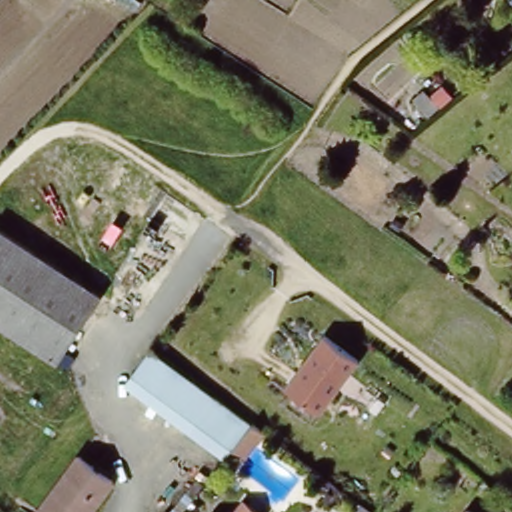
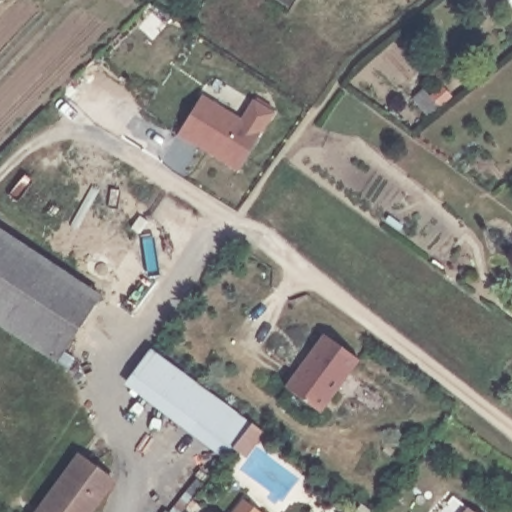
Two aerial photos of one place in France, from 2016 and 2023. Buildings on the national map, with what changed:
unchanged [(439,104),(429,112),(415,94),(424,87),(439,104)]
new [(202,95),(242,119),(254,99),(275,111),(237,171),(178,136),(202,95)]
unchanged [(99,300),(56,367),(0,330),(0,234),(99,300)]
unchanged [(321,330),(356,356),(316,409),(282,383),(321,330)]
unchanged [(264,437),(236,475),(121,391),(148,355),(264,437)]
unchanged [(110,490),(93,512),(39,512),(76,464),(110,490)]
unchanged [(169,511),(198,475),(211,485),(191,512),(160,512),(164,506),(169,511)]
unchanged [(244,507),(250,512),(240,512),(241,511),(244,507)]

